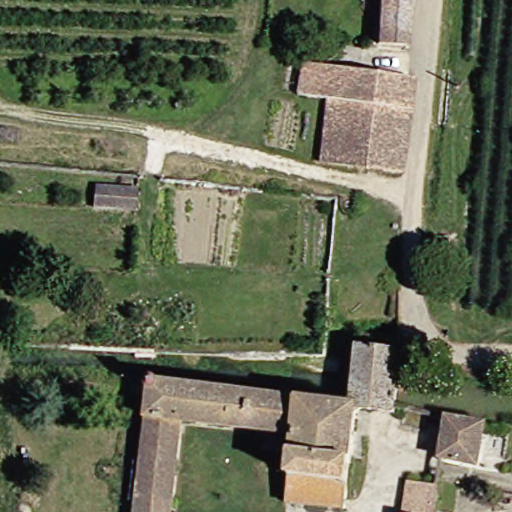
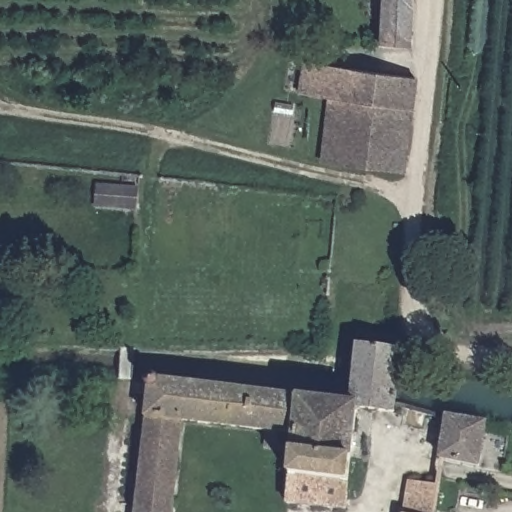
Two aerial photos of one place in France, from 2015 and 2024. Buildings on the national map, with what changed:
unchanged [(420,43),(386,42),(389,0),(422,0),(420,43)]
unchanged [(360,141),(360,161),(331,158),(337,98),(312,97),(314,67),(420,79),(413,147),(360,141)]
unchanged [(360,161),(360,141),(413,147),(410,170),(360,161)]
unchanged [(101,185),(148,186),(145,213),(100,208),(101,185)]
unchanged [(357,356),(359,342),(397,346),(405,348),(403,374),(400,411),(360,406),(356,453),(298,448),(300,434),(290,433),(290,446),(272,444),(273,430),(190,418),(179,512),(146,512),(152,429),(152,382),(352,402),(357,356)]
unchanged [(487,463),(454,458),(458,418),(492,424),(487,463)]
unchanged [(356,453),(353,489),(295,483),(298,448),(356,453)]
unchanged [(353,489),(351,510),(292,503),(295,483),(353,489)]
unchanged [(445,489),(441,512),(413,512),(418,484),(445,489)]

